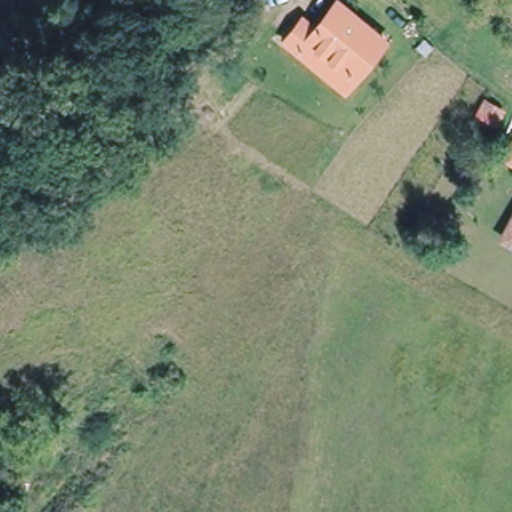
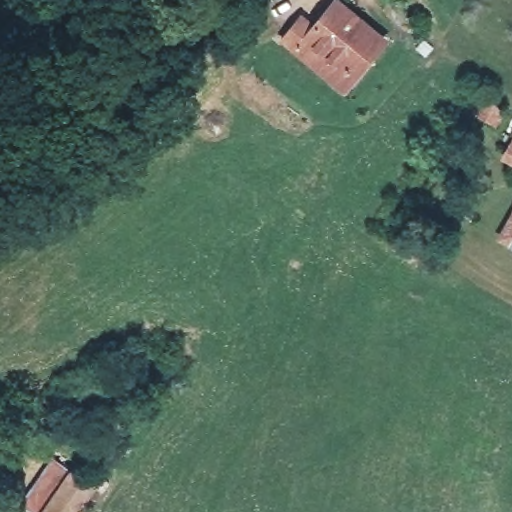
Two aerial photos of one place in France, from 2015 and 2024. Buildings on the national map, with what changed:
unchanged [(283,40),(303,18),(312,26),(334,0),(336,0),(384,40),(352,77),(341,90),(298,52),(283,40)]
new [(502,159),(512,140),(512,164),(502,159)]
new [(499,239),(512,211),(512,246),(499,239)]
demolished [(509,232),(512,226),(512,233),(509,232)]
new [(52,459),(96,486),(79,512),(31,512),(20,505),(52,459)]

